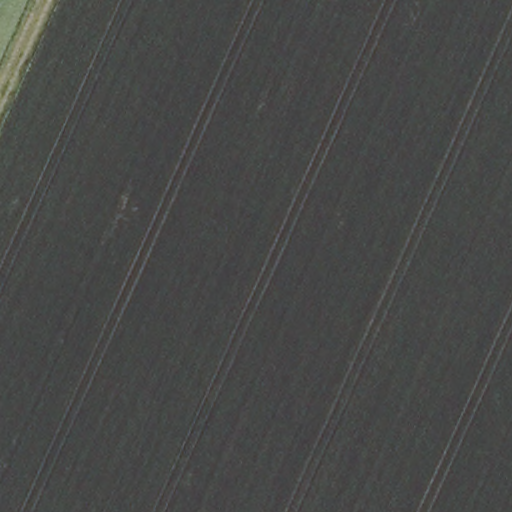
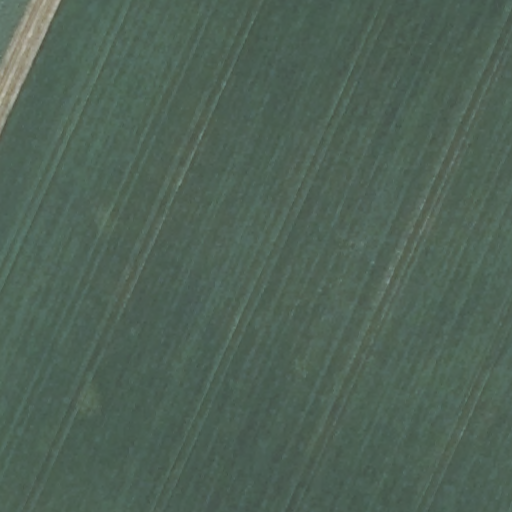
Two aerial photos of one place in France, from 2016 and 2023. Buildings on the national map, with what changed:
[]

